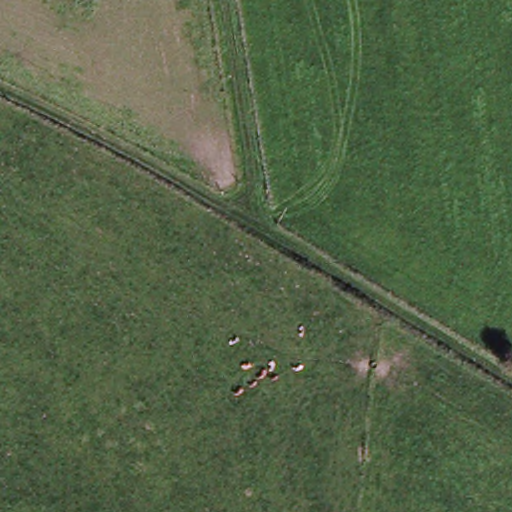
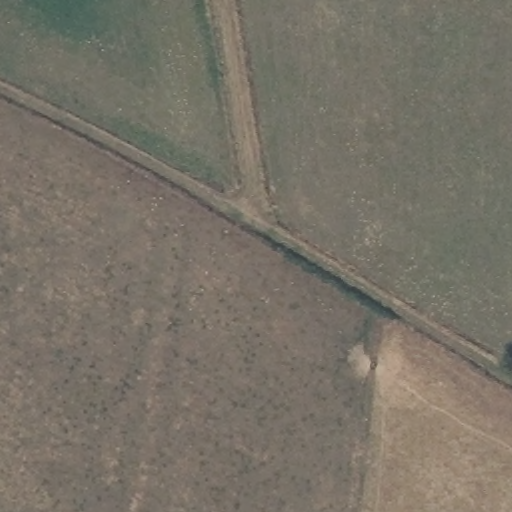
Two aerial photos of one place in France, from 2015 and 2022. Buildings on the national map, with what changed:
[]

